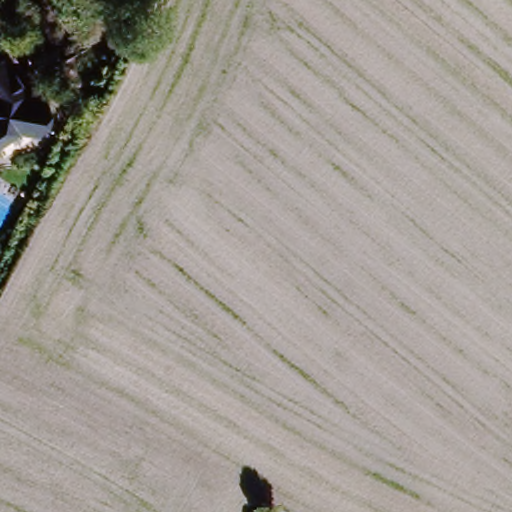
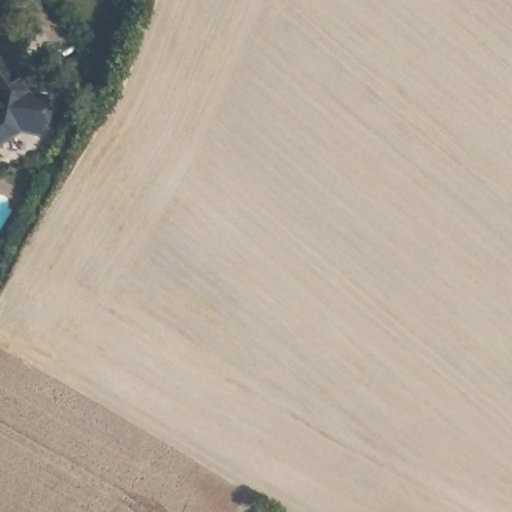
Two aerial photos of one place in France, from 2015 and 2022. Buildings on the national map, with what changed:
unchanged [(22,121),(0,137),(0,55),(6,51),(29,86),(52,91),(42,125),(22,121)]

